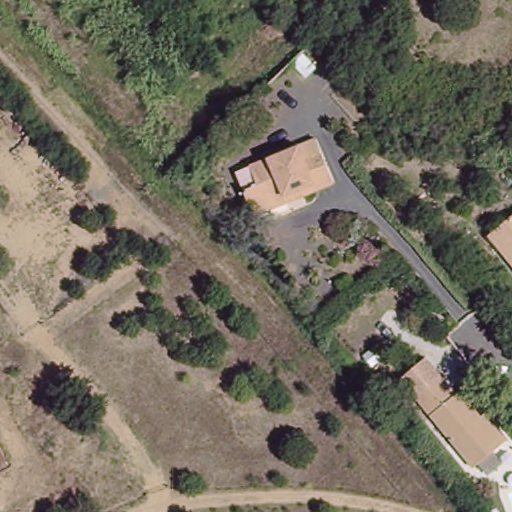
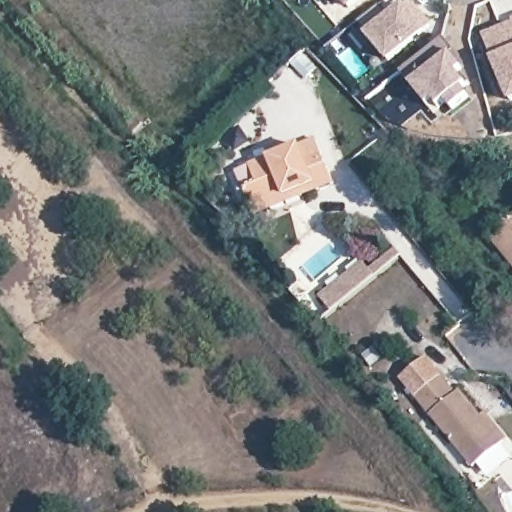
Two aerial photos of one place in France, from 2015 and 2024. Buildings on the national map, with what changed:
new [(350,9),(343,0),(361,0),(350,9)]
new [(380,5),(390,18),(410,1),(430,26),(388,61),(357,24),(380,5)]
new [(504,30),(505,36),(512,33),(512,103),(485,39),(504,30)]
new [(413,85),(402,71),(445,36),(455,50),(452,52),(464,66),(458,71),(469,83),(464,87),(470,95),(454,109),(447,101),(440,106),(435,100),(429,105),(413,85)]
unchanged [(245,190),(260,182),(252,164),(297,145),(306,160),(324,153),(336,181),(320,188),(254,216),(251,206),(245,190)]
unchanged [(511,259),(492,236),(500,229),(512,219),(512,260),(511,259)]
new [(362,262),(375,277),(332,312),(319,297),(362,262)]
unchanged [(430,352),(461,390),(468,385),(512,437),(475,469),(415,400),(400,381),(430,352)]

